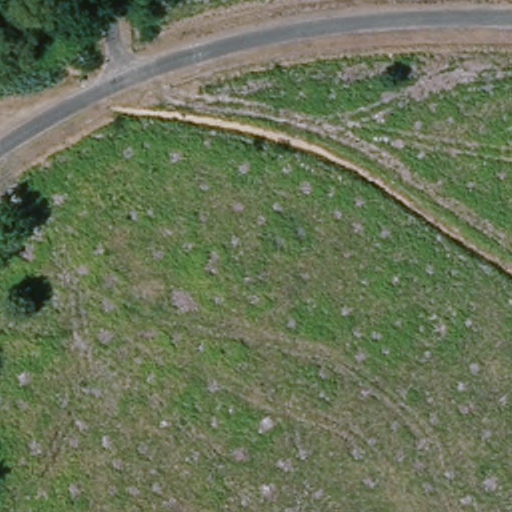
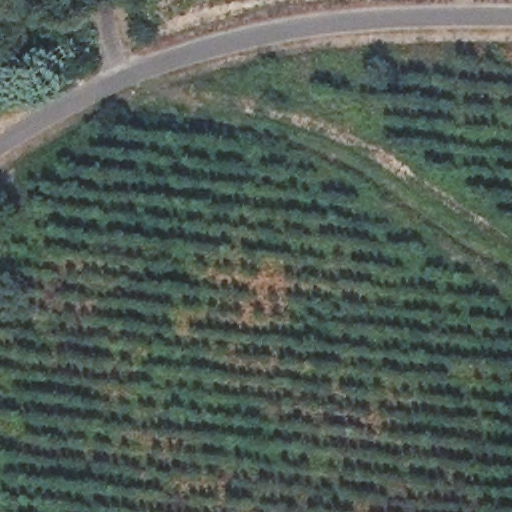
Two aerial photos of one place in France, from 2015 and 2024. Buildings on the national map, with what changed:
[]

